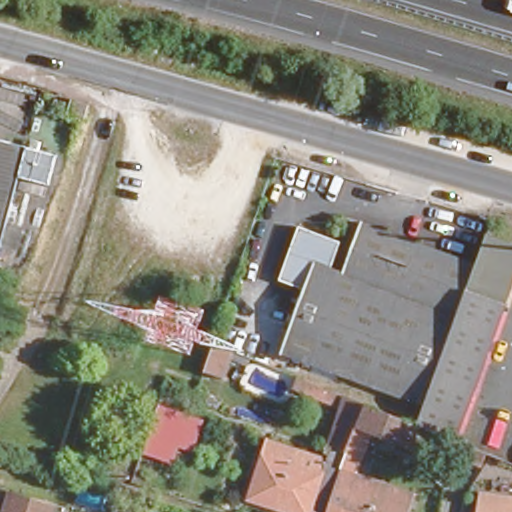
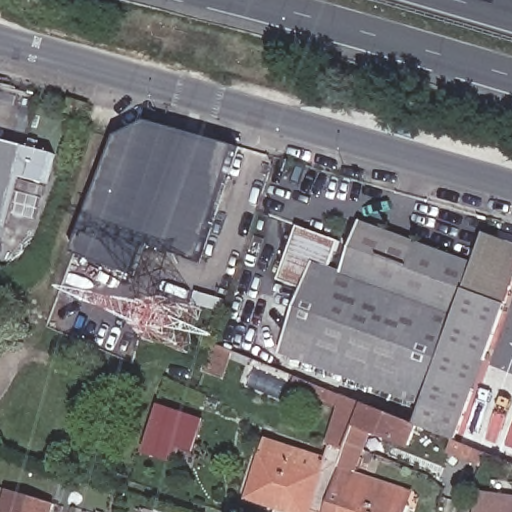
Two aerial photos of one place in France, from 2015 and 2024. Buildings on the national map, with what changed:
unchanged [(71,119),(77,99),(96,105),(89,125),(71,119)]
new [(147,246),(136,276),(75,255),(118,137),(150,121),(237,146),(199,263),(147,246)]
unchanged [(50,150),(42,179),(13,171),(0,223),(0,137),(50,150)]
unchanged [(423,417),(340,387),(328,382),(334,372),(277,350),(293,298),(270,289),(297,218),(337,235),(328,265),(340,268),(360,212),(472,251),(481,226),(512,238),(512,286),(466,434),(423,417)]
unchanged [(195,382),(205,351),(239,364),(235,373),(219,366),(212,388),(195,382)]
unchanged [(357,426),(345,445),(358,451),(355,465),(412,486),(403,512),(273,512),(236,500),(255,434),(317,447),(340,387),(423,417),(411,444),(357,426)]
new [(157,413),(202,425),(195,449),(180,445),(177,458),(146,449),(157,413)]
unchanged [(470,464),(455,459),(460,447),(487,458),(512,468),(512,475),(471,459),(470,464)]
unchanged [(9,486),(56,501),(53,512),(0,512),(5,498),(9,486)]
unchanged [(480,502),(481,491),(512,495),(512,512),(492,512),(492,506),(480,502)]

